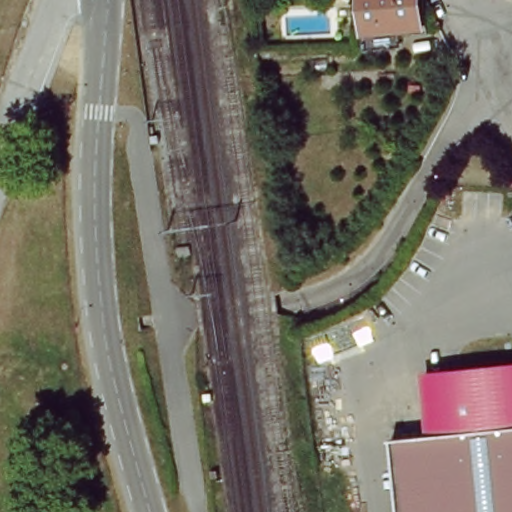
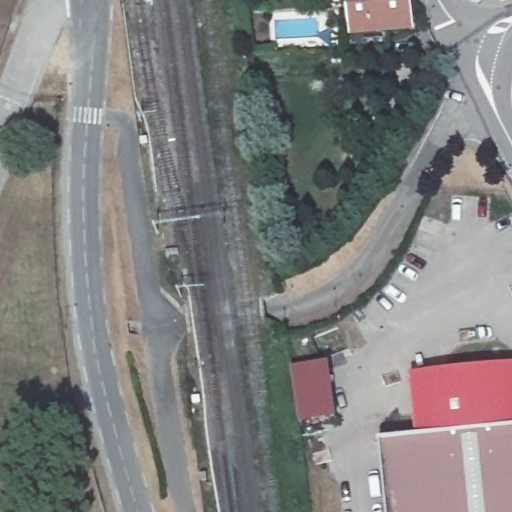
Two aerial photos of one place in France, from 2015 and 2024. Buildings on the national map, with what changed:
unchanged [(411,38),(356,43),(352,0),(408,0),(411,38)]
new [(290,367),(325,363),(333,419),(298,423),(290,367)]
unchanged [(419,439),(411,376),(512,365),(512,512),(391,512),(383,442),(419,439)]

